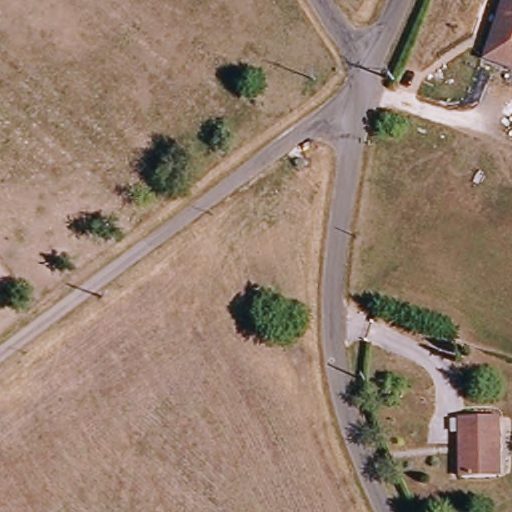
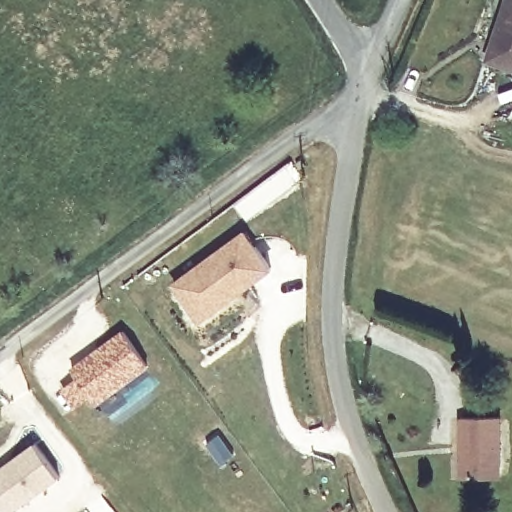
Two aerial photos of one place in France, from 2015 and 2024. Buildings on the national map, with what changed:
unchanged [(489,60),(510,0),(512,0),(512,67),(489,60)]
new [(242,232),(269,270),(198,321),(171,283),(242,232)]
new [(73,376),(68,370),(122,326),(151,365),(91,410),(84,401),(76,407),(60,388),(73,376)]
unchanged [(510,415),(512,464),(512,477),(472,477),(470,415),(510,415)]
new [(218,432),(234,455),(219,465),(203,444),(218,432)]
new [(0,468),(35,443),(61,477),(12,512),(3,512),(0,508),(0,468)]

